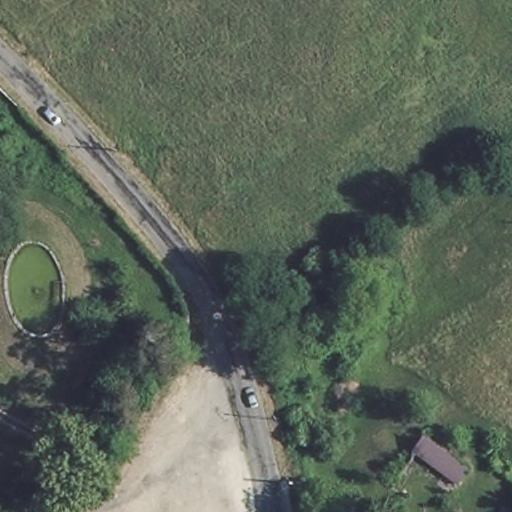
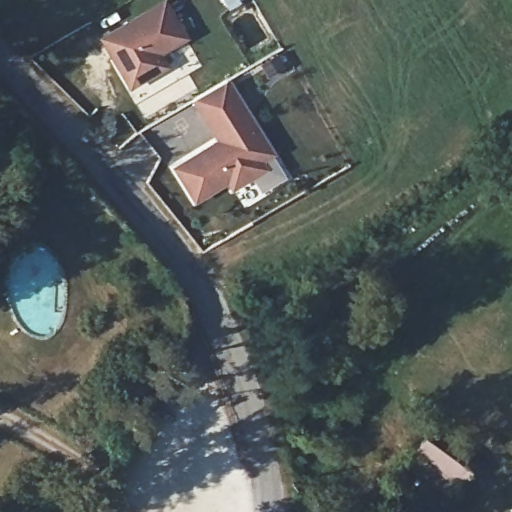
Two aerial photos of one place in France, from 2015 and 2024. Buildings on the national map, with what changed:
new [(104,41),(165,5),(186,40),(158,56),(166,69),(132,89),(119,67),(115,61),(104,41)]
new [(233,191),(228,184),(196,204),(177,172),(216,147),(221,145),(203,116),(195,102),(226,83),(235,96),(262,141),(272,156),(260,164),(250,149),(265,171),(233,191)]
unchanged [(429,436),(472,466),(460,482),(417,451),(429,436)]

